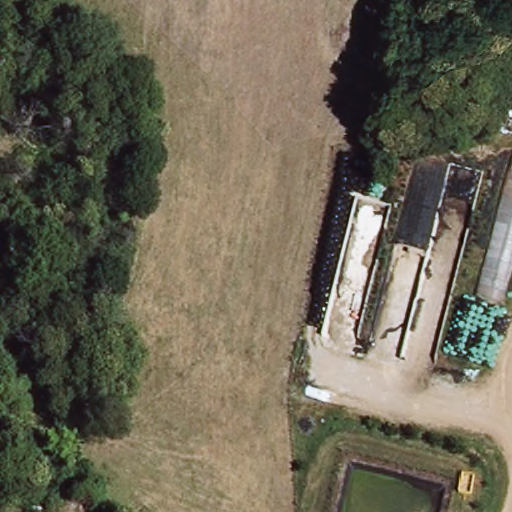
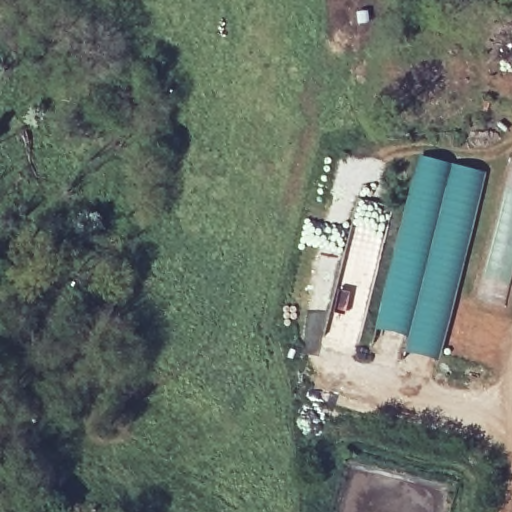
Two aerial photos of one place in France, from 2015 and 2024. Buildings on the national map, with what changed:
new [(395,234),(418,156),(486,173),(438,360),(403,350),(406,337),(373,328),(395,234)]
unchanged [(512,178),(512,279),(505,307),(480,298),(512,178)]
new [(307,309),(327,311),(318,355),(301,352),(307,309)]

